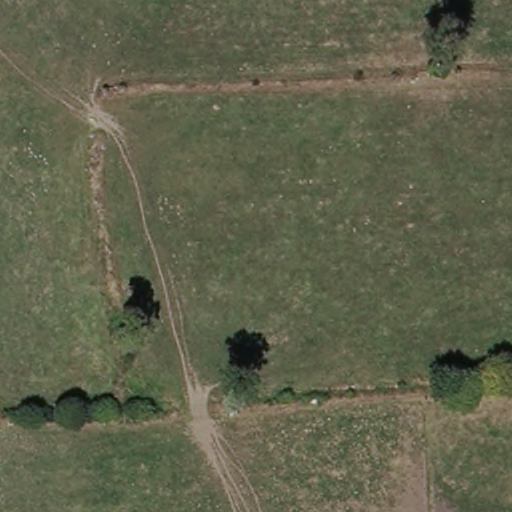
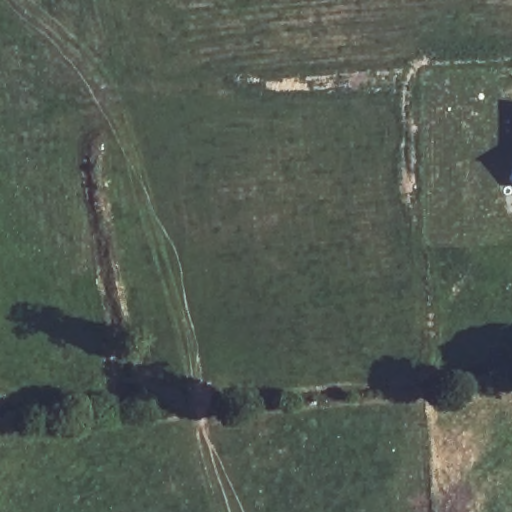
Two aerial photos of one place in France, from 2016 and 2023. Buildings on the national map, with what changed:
[]

